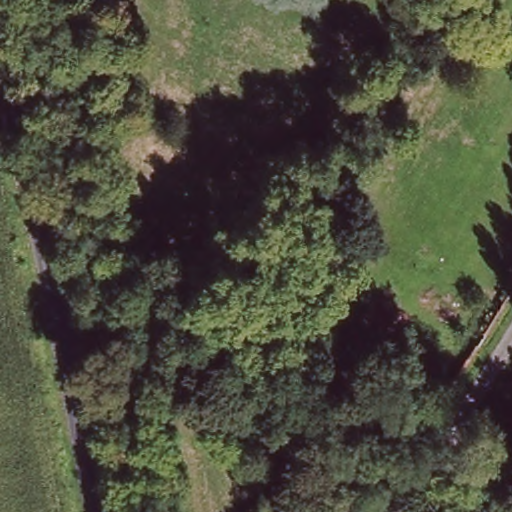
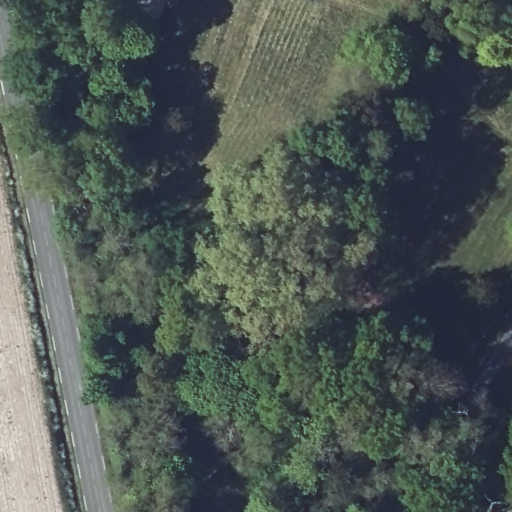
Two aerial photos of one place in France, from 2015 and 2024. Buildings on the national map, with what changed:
[]

